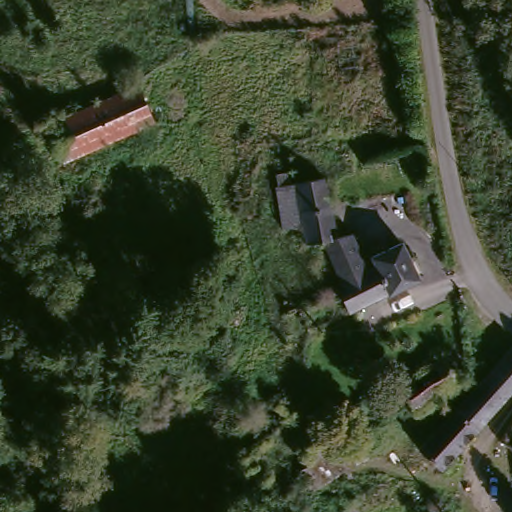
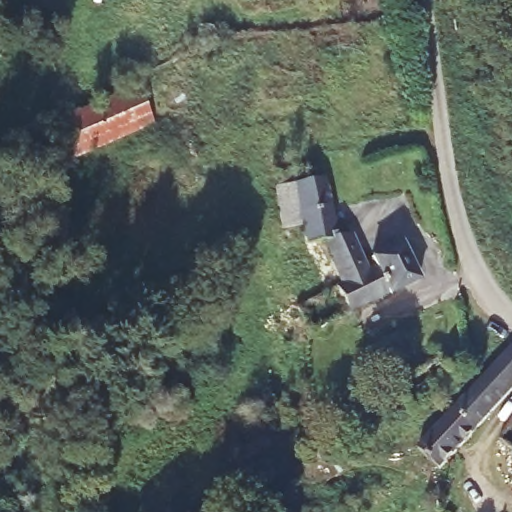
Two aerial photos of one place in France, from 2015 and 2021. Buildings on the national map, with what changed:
unchanged [(153,120),(66,157),(49,120),(138,83),(153,120)]
unchanged [(337,284),(321,241),(302,242),(301,222),(283,223),(281,183),(286,183),(286,172),(303,172),(335,173),(341,231),(352,230),(362,258),(399,245),(414,281),(348,314),(336,285),(337,284)]
unchanged [(440,474),(417,455),(427,442),(502,346),(512,354),(512,385),(440,474)]
unchanged [(448,351),(461,376),(412,412),(395,378),(448,351)]
unchanged [(412,412),(388,424),(371,390),(395,378),(412,412)]
unchanged [(296,424),(320,415),(333,445),(311,457),(296,424)]
unchanged [(512,424),(512,441),(504,436),(512,424)]
unchanged [(204,484),(238,460),(256,487),(223,511),(204,484)]

